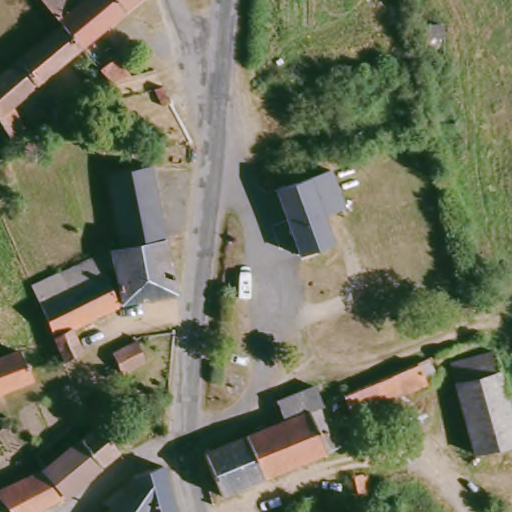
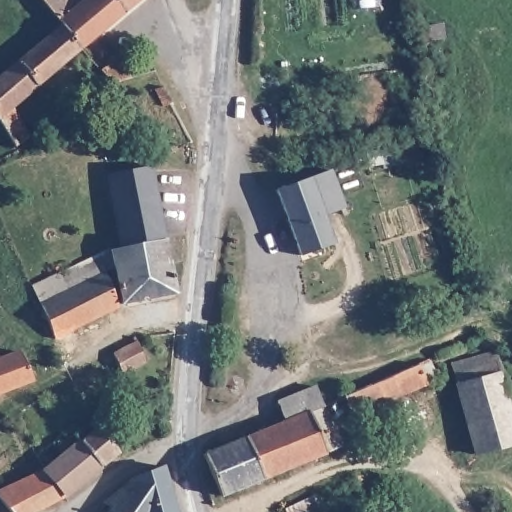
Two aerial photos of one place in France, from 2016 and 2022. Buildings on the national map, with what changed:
unchanged [(82,7),(90,0),(135,0),(128,6),(81,48),(64,27),(60,22),(42,0),(76,0),(82,7)]
unchanged [(81,48),(12,110),(32,141),(20,149),(0,120),(0,82),(64,27),(81,48)]
unchanged [(112,56),(126,76),(106,81),(97,69),(112,56)]
unchanged [(167,99),(160,102),(152,87),(159,83),(167,99)]
unchanged [(125,244),(110,172),(141,166),(153,163),(182,294),(127,305),(117,247),(125,244)]
unchanged [(317,243),(298,250),(280,193),(332,173),(346,211),(325,218),(328,227),(331,236),(317,243)]
unchanged [(68,288),(60,271),(103,253),(123,305),(122,306),(77,329),(85,349),(69,358),(45,300),(45,298),(68,288)]
unchanged [(142,360),(125,369),(117,351),(135,340),(142,360)]
unchanged [(20,354),(34,380),(0,393),(0,362),(20,354)]
unchanged [(512,447),(477,455),(455,368),(495,357),(512,424),(512,447)]
unchanged [(427,363),(429,363),(437,382),(347,420),(340,399),(427,363)]
unchanged [(100,383),(81,393),(73,381),(72,379),(91,367),(100,383)]
unchanged [(249,483),(235,441),(237,440),(289,419),(283,402),(287,398),(320,385),(327,403),(330,402),(346,444),(249,483)]
unchanged [(65,497),(31,512),(19,512),(1,492),(49,468),(107,423),(124,450),(65,497)]
unchanged [(249,483),(227,492),(213,456),(213,450),(235,441),(249,483)]
unchanged [(110,505),(140,480),(166,468),(178,512),(112,512),(114,509),(110,505)]

